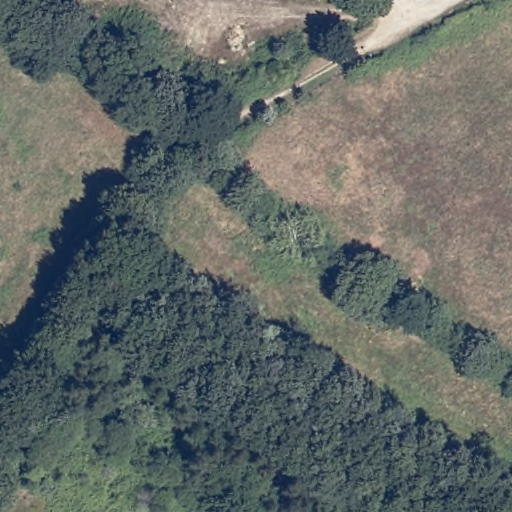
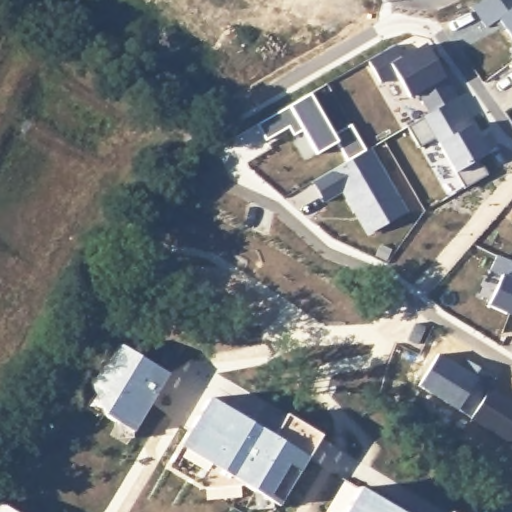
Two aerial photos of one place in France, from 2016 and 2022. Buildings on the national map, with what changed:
new [(391,45),(399,56),(423,43),(444,77),(441,79),(455,96),(430,110),(419,91),(406,98),(394,74),(380,83),(365,60),(391,45)]
new [(512,59),(512,63),(510,60),(512,59)]
new [(344,160),(335,143),(314,155),(299,129),(290,134),(286,127),(263,140),(254,124),(285,106),(308,94),(333,134),(349,125),(363,150),(368,148),(405,213),(365,235),(341,193),(322,203),(310,183),(344,160)]
new [(455,96),(487,151),(477,157),(487,173),(463,187),(434,137),(418,146),(405,125),(455,96)]
new [(490,269),(497,254),(512,261),(512,314),(487,302),(500,274),(490,269)]
new [(123,344),(171,373),(137,432),(106,414),(98,386),(123,344)]
new [(258,508),(257,489),(247,483),(204,487),(168,466),(210,396),(274,435),(310,456),(281,504),(274,499),(274,506),(258,508)]
new [(287,413),(323,434),(310,456),(274,435),(287,413)]
new [(407,512),(347,512),(362,485),(407,512)]
new [(13,512),(0,512),(0,504),(13,512)]
new [(457,512),(452,512),(453,510),(457,512)]

